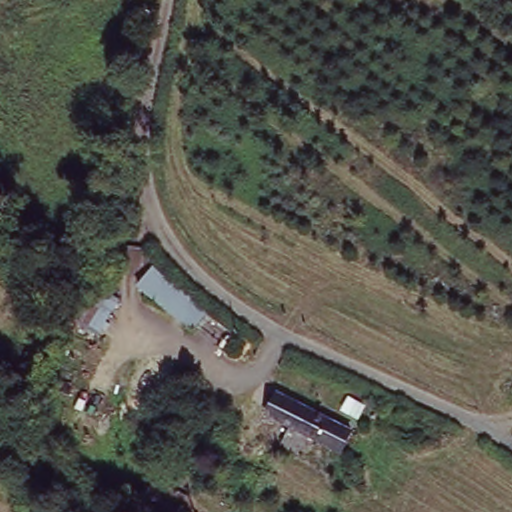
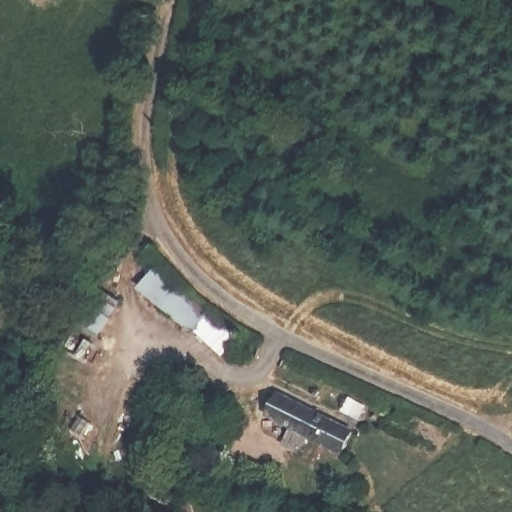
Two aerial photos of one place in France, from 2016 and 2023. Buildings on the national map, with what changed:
unchanged [(208,313),(190,329),(139,287),(156,270),(208,313)]
unchanged [(109,291),(98,304),(91,299),(102,286),(109,291)]
unchanged [(350,432),(341,454),(266,415),(276,393),(350,432)]
unchanged [(153,512),(135,512),(139,504),(154,511),(153,512)]

